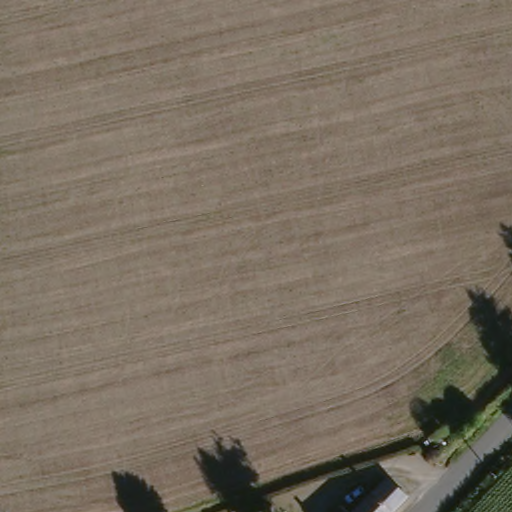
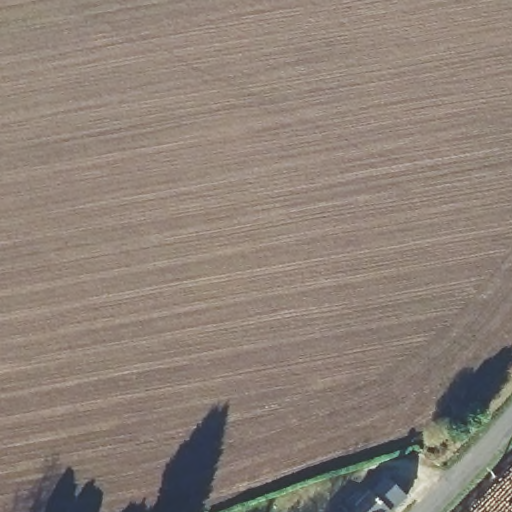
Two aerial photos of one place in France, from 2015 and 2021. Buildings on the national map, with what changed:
unchanged [(358,512),(384,484),(405,504),(398,512),(358,512)]

